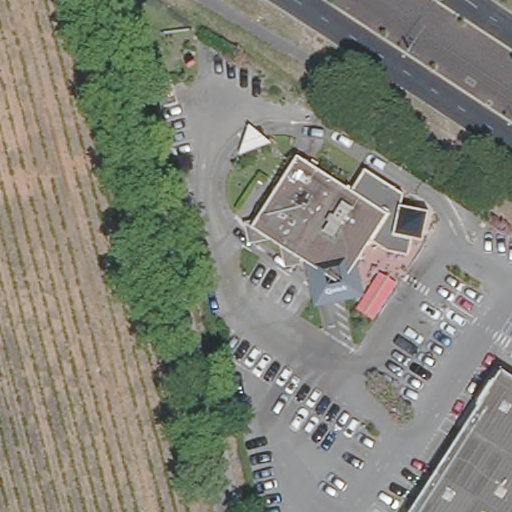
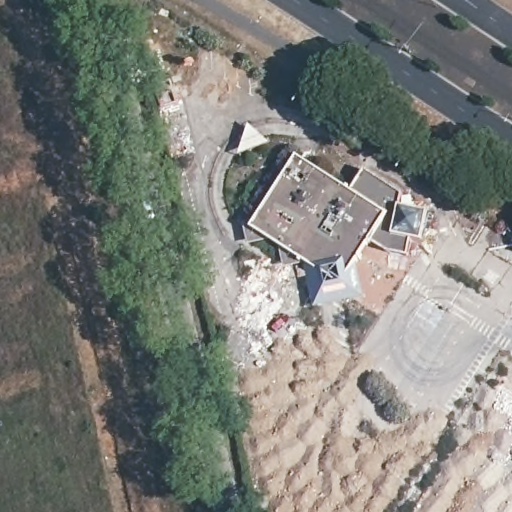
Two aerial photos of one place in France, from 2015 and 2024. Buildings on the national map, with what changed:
unchanged [(253,222),(300,155),(347,185),(361,164),(399,189),(397,201),(425,207),(419,236),(408,234),(404,251),(384,247),(368,236),(352,258),(337,281),(301,256),(253,222)]
unchanged [(337,281),(352,258),(359,292),(310,302),(301,256),(337,281)]
new [(401,283),(376,323),(354,310),(378,272),(401,283)]
demolished [(512,378),(512,512),(413,512),(504,372),(512,378)]

